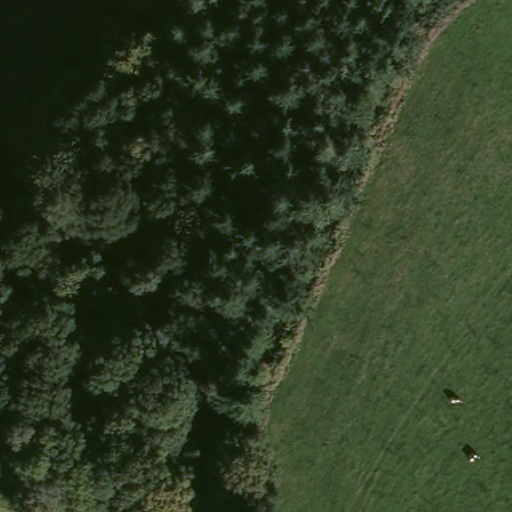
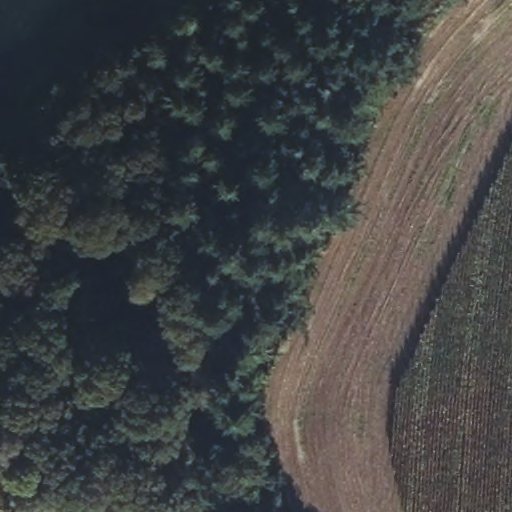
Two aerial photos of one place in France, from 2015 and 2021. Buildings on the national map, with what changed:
[]

